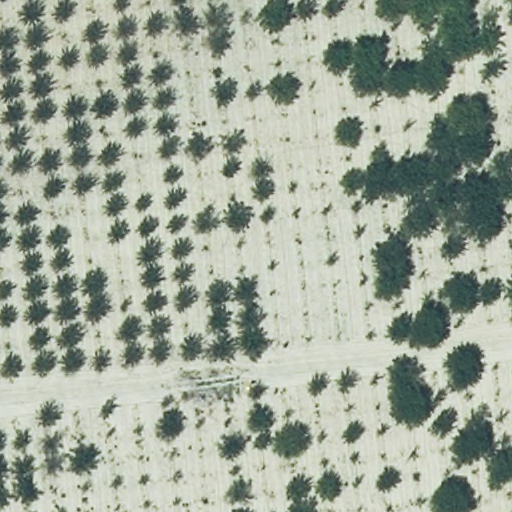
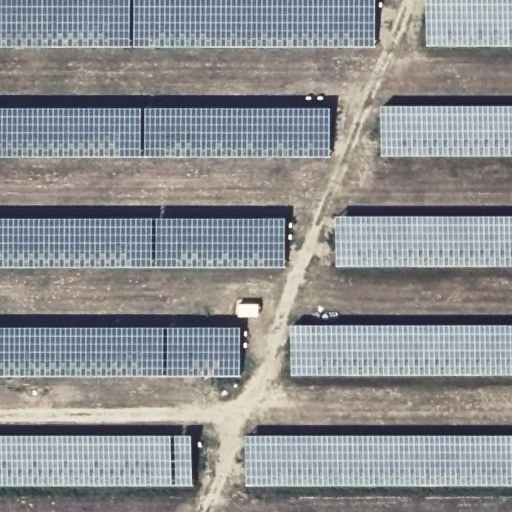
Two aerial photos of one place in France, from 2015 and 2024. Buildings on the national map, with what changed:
new [(0,45),(0,0),(373,0),(373,44),(0,45)]
new [(512,45),(427,45),(428,0),(512,0),(512,45)]
new [(327,154),(0,155),(0,106),(328,107),(327,154)]
new [(381,106),(512,106),(512,155),(382,155),(381,106)]
new [(337,215),(512,215),(512,265),(336,265),(337,215)]
new [(0,265),(0,216),(283,217),(283,264),(0,265)]
new [(0,374),(0,325),(238,324),(238,373),(0,374)]
new [(291,325),(512,325),(512,374),(292,374),(291,325)]
new [(0,484),(0,435),(193,435),(193,484),(0,484)]
new [(246,435),(512,435),(512,484),(246,484),(246,435)]

